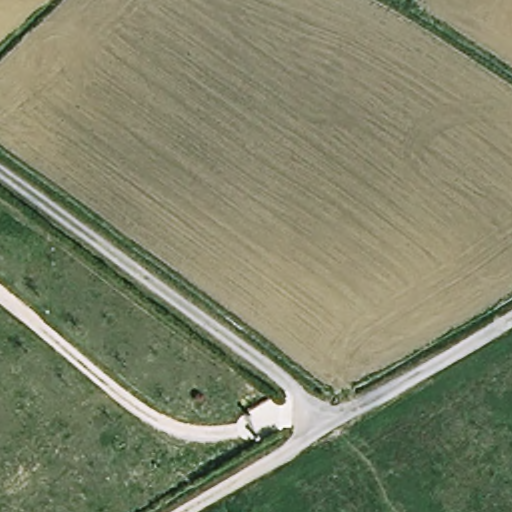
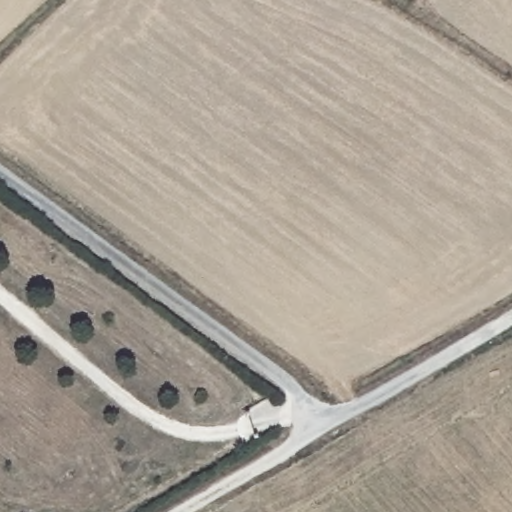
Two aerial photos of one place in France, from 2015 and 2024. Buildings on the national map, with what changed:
[]

